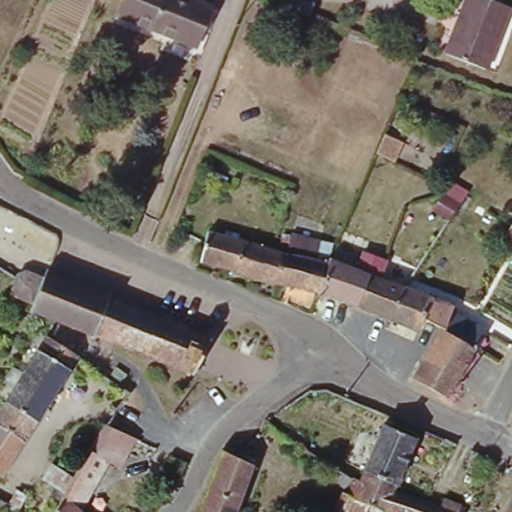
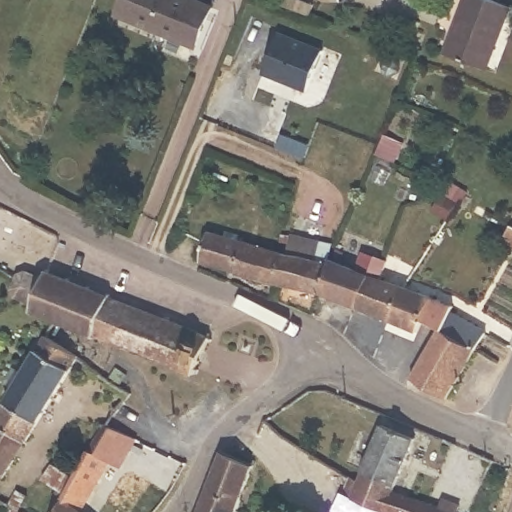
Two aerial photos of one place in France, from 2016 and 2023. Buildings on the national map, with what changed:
unchanged [(215,8),(200,46),(120,18),(128,0),(194,0),(215,8)]
unchanged [(512,5),(489,67),(445,51),(467,0),(497,0),(512,5)]
new [(276,30),(320,47),(305,89),(261,71),(276,30)]
unchanged [(379,141),(400,151),(392,171),(370,162),(379,141)]
unchanged [(407,177),(412,167),(420,172),(415,180),(407,177)]
unchanged [(465,208),(451,201),(455,193),(469,200),(465,208)]
unchanged [(413,331),(392,321),(391,320),(374,313),(320,290),(277,281),(285,247),(291,248),(296,225),(337,234),(335,255),(337,256),(358,266),(367,247),(386,256),(378,275),(391,280),(406,287),(411,289),(433,300),(424,319),(418,333),(413,331)]
unchanged [(201,265),(209,239),(212,232),(285,247),(277,281),(201,265)]
unchanged [(205,328),(189,369),(36,312),(55,276),(205,328)]
unchanged [(483,323),(481,327),(475,341),(472,345),(438,327),(424,319),(433,300),(483,323)]
unchanged [(413,374),(438,327),(472,345),(450,394),(413,374)]
unchanged [(79,356),(0,473),(0,409),(50,338),(79,356)]
unchanged [(377,419),(421,444),(403,490),(463,509),(462,512),(336,512),(345,489),(377,419)]
unchanged [(47,480),(60,460),(81,473),(110,426),(114,427),(123,432),(137,438),(119,471),(112,468),(81,512),(59,512),(70,494),(47,480)]
unchanged [(241,512),(210,512),(230,459),(256,472),(241,512)]
unchanged [(20,481),(31,487),(22,508),(10,502),(20,481)]

